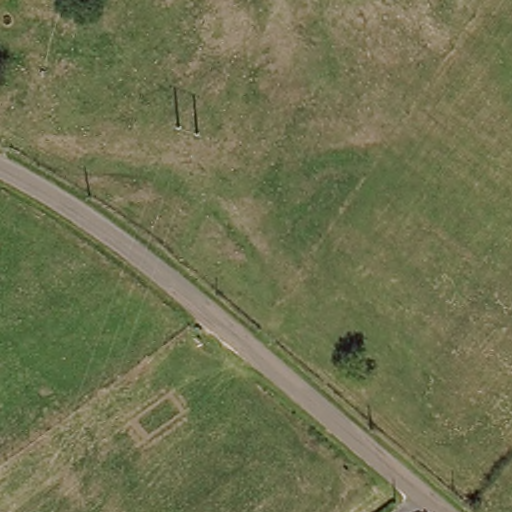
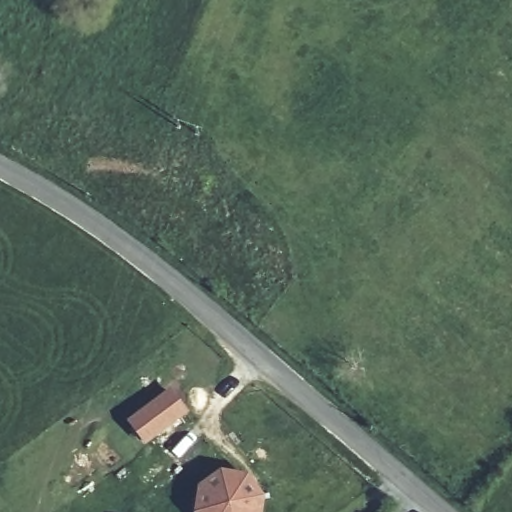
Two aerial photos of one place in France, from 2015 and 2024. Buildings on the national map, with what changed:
new [(129,421),(171,389),(190,414),(146,445),(129,421)]
new [(266,498),(264,512),(195,512),(199,485),(220,470),(250,474),(266,498)]

